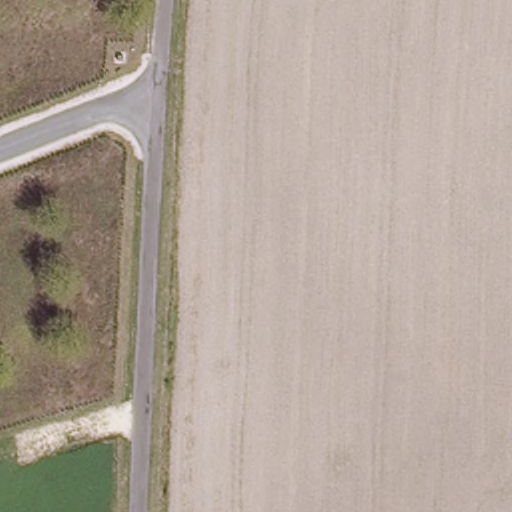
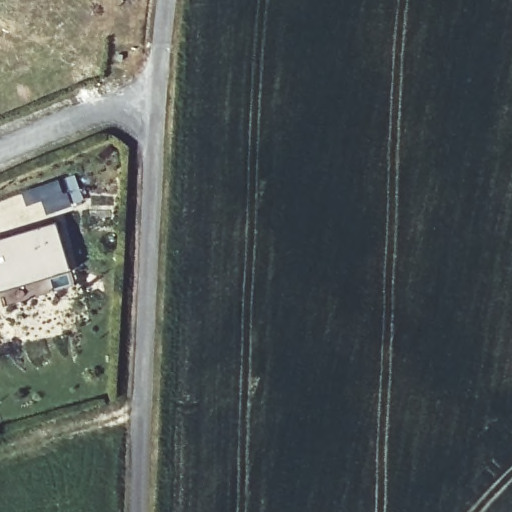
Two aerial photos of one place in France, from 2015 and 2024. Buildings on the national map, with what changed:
new [(54,224),(69,270),(0,292),(0,241),(54,224)]

